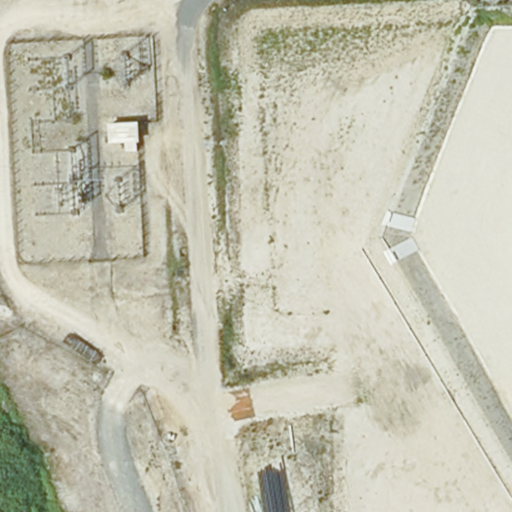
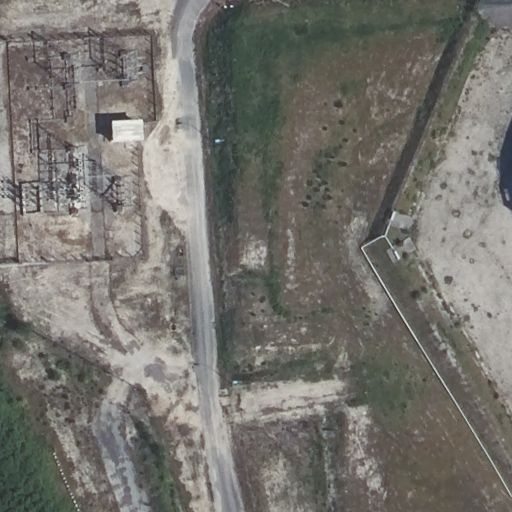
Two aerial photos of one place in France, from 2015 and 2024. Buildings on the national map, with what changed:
unchanged [(138,147),(106,147),(106,126),(138,125),(138,147)]

